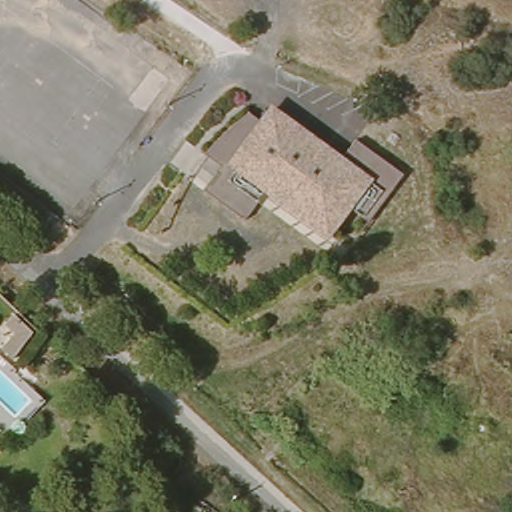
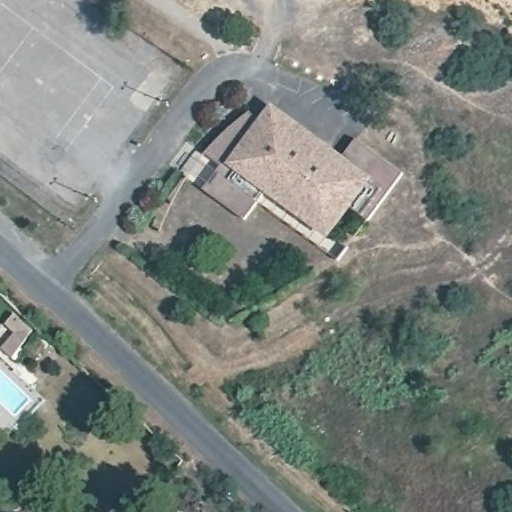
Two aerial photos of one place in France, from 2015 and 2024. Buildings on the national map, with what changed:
unchanged [(341,156),(355,135),(404,169),(370,217),(349,203),(330,231),(268,188),(247,220),(187,178),(205,154),(224,130),(248,111),(262,120),(271,107),(341,156)]

